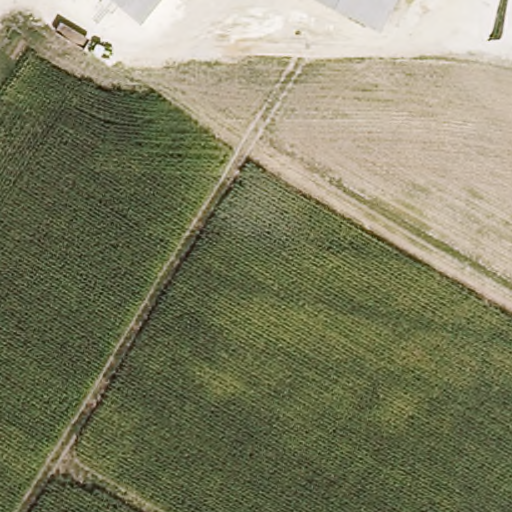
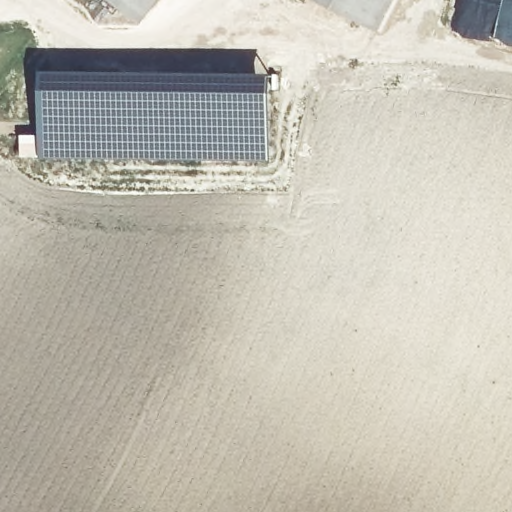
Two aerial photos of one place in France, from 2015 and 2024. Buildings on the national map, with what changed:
unchanged [(111,0),(161,0),(141,25),(111,0)]
unchanged [(399,0),(382,34),(318,0),(399,0)]
new [(39,134),(40,71),(217,72),(272,76),(270,160),(219,162),(164,160),(76,161),(20,157),(19,134),(39,134)]

